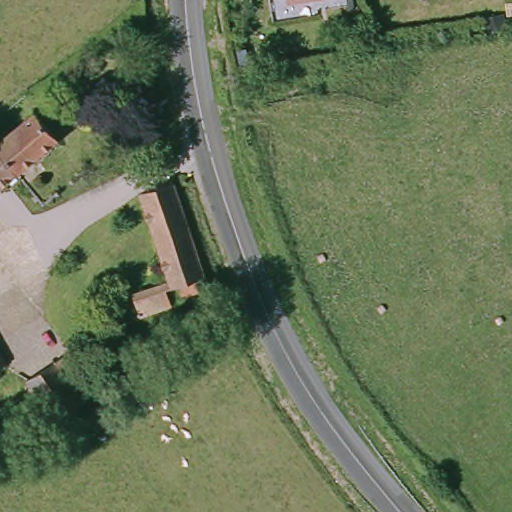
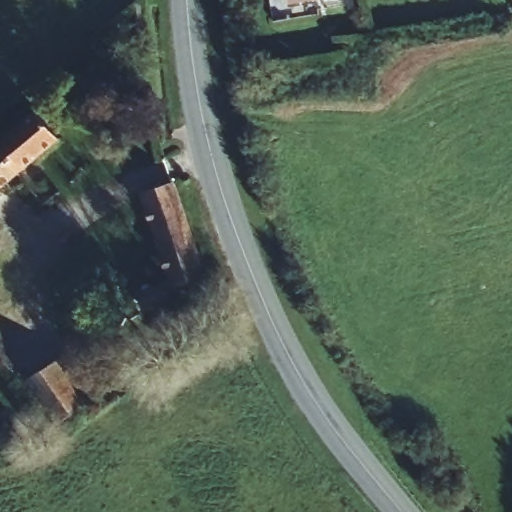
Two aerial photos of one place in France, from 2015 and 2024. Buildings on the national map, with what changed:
unchanged [(291,0),(350,0),(291,5),(291,0)]
unchanged [(38,114),(52,132),(60,141),(51,148),(17,174),(0,188),(0,142),(30,120),(38,114)]
unchanged [(183,293),(177,280),(168,282),(139,189),(173,178),(183,213),(185,217),(187,229),(193,245),(205,285),(183,293)]
unchanged [(165,301),(138,312),(133,296),(160,285),(165,301)]
unchanged [(2,372),(0,373),(0,349),(11,367),(2,372)]
unchanged [(92,396),(74,407),(50,422),(23,375),(66,351),(92,396)]

